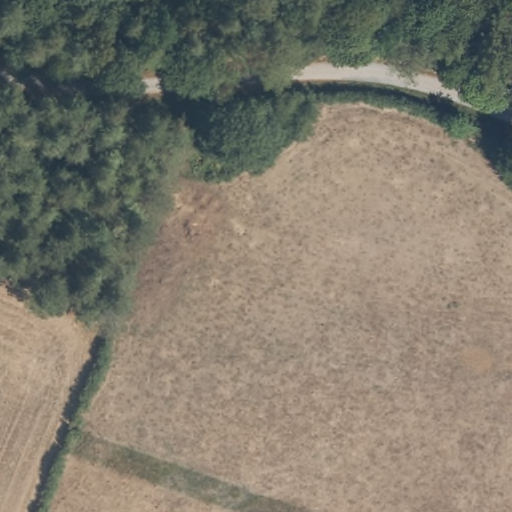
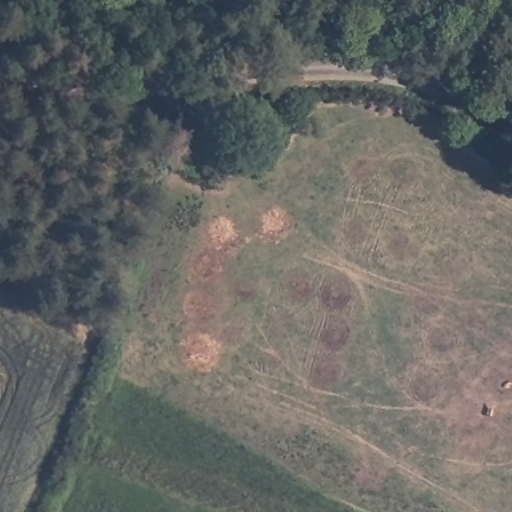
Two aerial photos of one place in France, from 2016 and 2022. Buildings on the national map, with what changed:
[]

